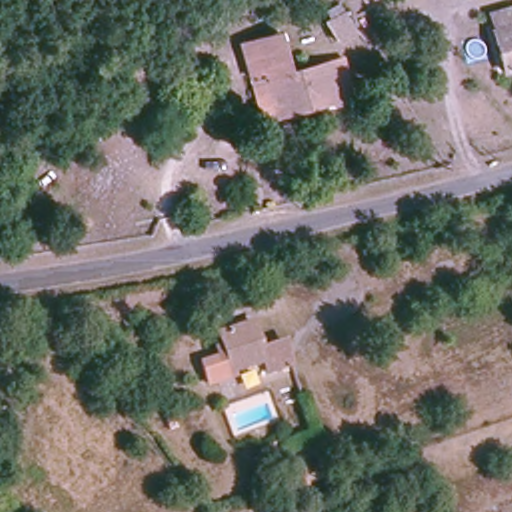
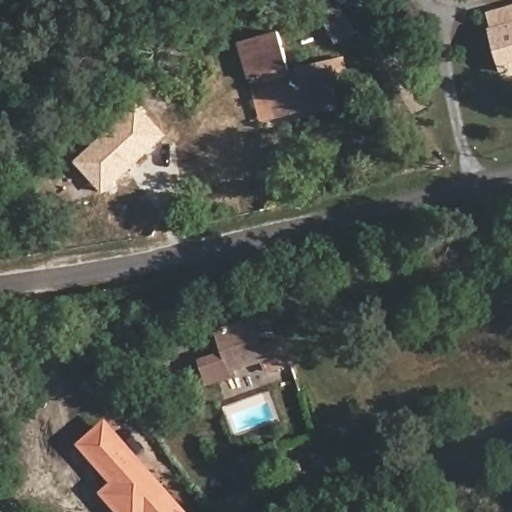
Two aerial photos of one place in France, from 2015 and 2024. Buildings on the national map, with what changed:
new [(337,0),(340,0),(338,1),(337,0)]
unchanged [(495,23),(512,19),(512,64),(506,66),(495,23)]
unchanged [(334,51),(321,31),(338,20),(352,38),(334,51)]
unchanged [(251,82),(242,51),(275,30),(287,72),(346,57),(358,105),(278,125),(264,128),(251,82)]
new [(163,136),(100,193),(74,162),(137,104),(163,136)]
unchanged [(298,370),(269,380),(265,366),(232,375),(218,332),(253,319),(262,351),(291,345),(298,370)]
new [(109,484),(76,445),(106,418),(188,512),(115,512),(99,493),(109,484)]

